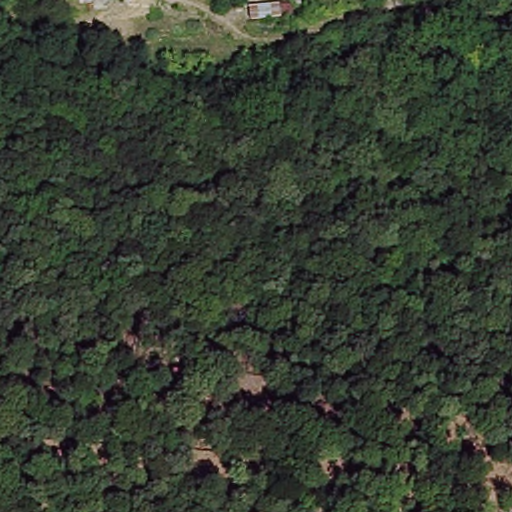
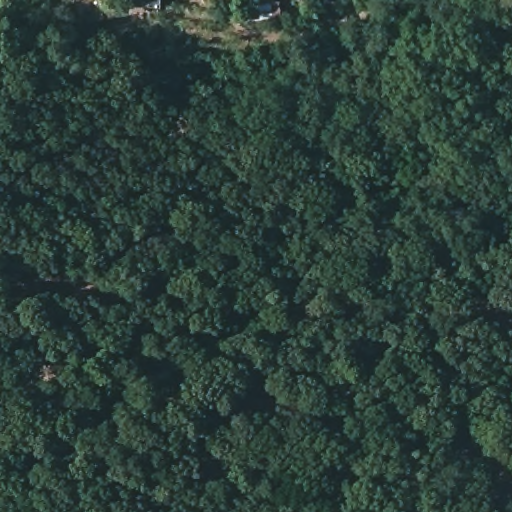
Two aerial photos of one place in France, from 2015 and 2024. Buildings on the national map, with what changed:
unchanged [(273,4),(274,20),(244,20),(244,5),(273,4)]

